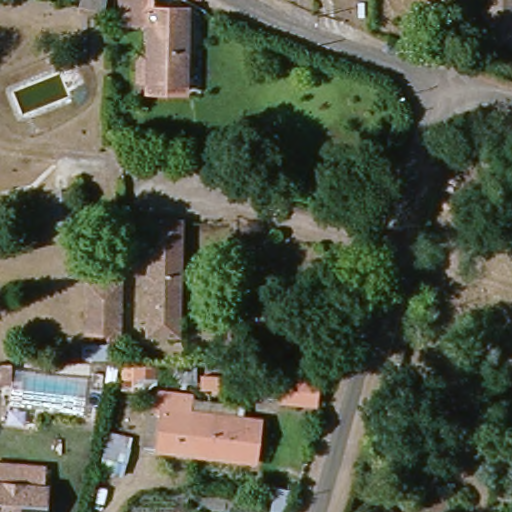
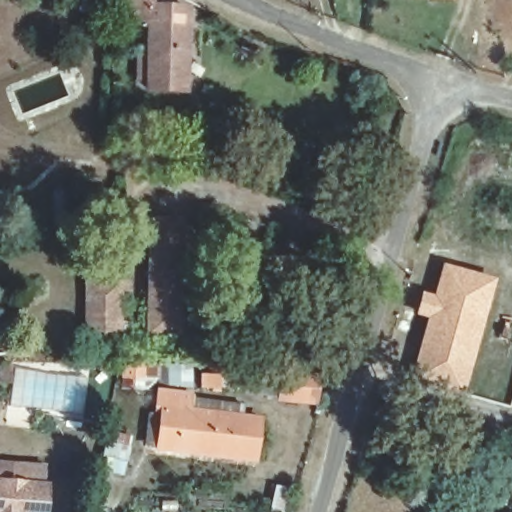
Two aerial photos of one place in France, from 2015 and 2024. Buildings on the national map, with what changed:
unchanged [(187,13),(185,89),(151,86),(152,59),(154,31),(122,30),(124,0),(153,0),(153,10),(187,13)]
demolished [(512,0),(512,41),(485,40),(486,0),(512,0)]
demolished [(470,127),(462,140),(453,134),(455,127),(462,122),(470,127)]
unchanged [(184,217),(182,264),(180,330),(150,327),(156,215),(184,217)]
new [(425,319),(413,315),(421,290),(432,294),(441,263),(496,279),(463,396),(408,380),(425,319)]
unchanged [(107,344),(107,336),(82,334),(86,264),(111,265),(112,277),(125,278),(124,333),(118,333),(118,361),(83,359),(82,343),(107,344)]
unchanged [(168,404),(256,420),(250,452),(161,437),(168,404)]
unchanged [(49,512),(0,512),(0,465),(14,467),(10,487),(52,494),(49,512)]

